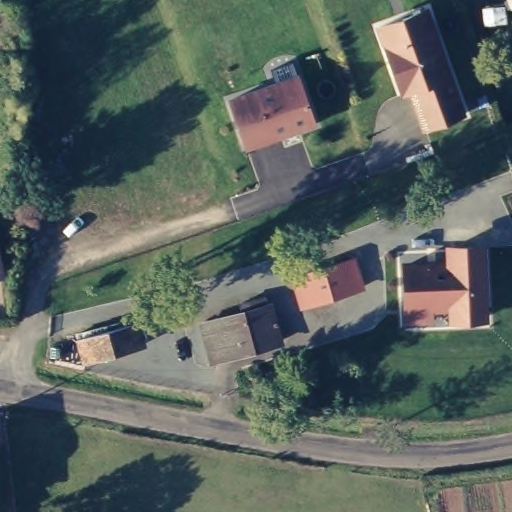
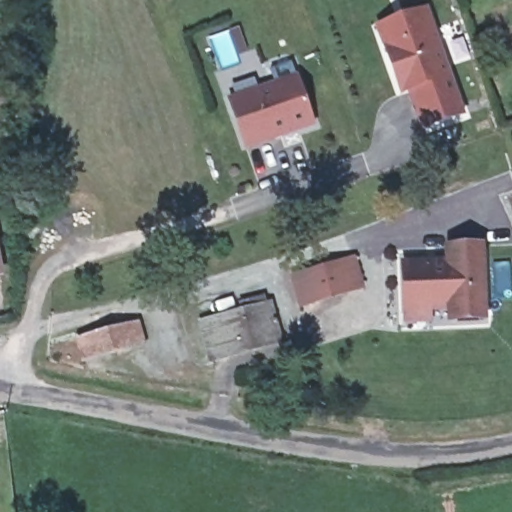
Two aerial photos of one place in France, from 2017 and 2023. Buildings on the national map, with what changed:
unchanged [(465,112),(422,127),(408,88),(401,91),(378,22),(428,5),(465,112)]
unchanged [(319,127),(247,148),(228,96),(300,72),(319,127)]
unchanged [(446,258),(445,243),(485,241),(488,321),(449,322),(448,310),(435,311),(435,325),(404,325),(400,260),(446,258)]
unchanged [(305,306),(295,278),(353,257),(363,289),(305,306)]
unchanged [(1,267),(0,267),(0,262),(1,267)]
unchanged [(240,309),(238,304),(247,302),(250,306),(264,302),(273,338),(208,357),(198,321),(240,309)]
unchanged [(136,320),(141,341),(103,350),(102,354),(83,357),(79,335),(136,320)]

